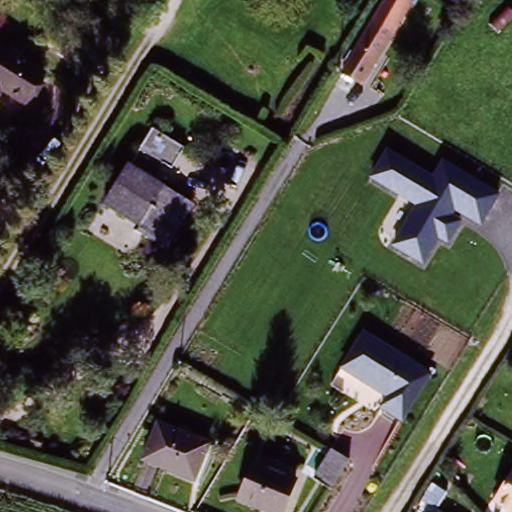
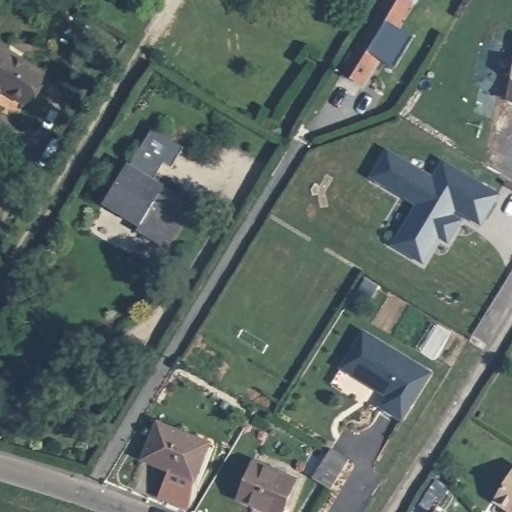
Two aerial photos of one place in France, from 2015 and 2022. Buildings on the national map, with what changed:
unchanged [(388,0),(407,0),(412,3),(360,86),(342,76),(388,0)]
unchanged [(0,44),(50,75),(30,106),(6,91),(0,100),(0,44)]
new [(507,100),(512,72),(512,104),(507,100)]
unchanged [(130,164),(150,128),(183,146),(171,168),(162,163),(153,179),(190,202),(163,247),(133,229),(137,222),(110,206),(102,201),(126,161),(130,164)]
unchanged [(435,178),(445,160),(500,196),(480,229),(465,222),(450,246),(441,240),(422,268),(389,246),(412,209),(367,178),(385,150),(435,178)]
unchanged [(389,396),(344,368),(366,332),(432,374),(404,420),(383,406),(389,396)]
unchanged [(210,451),(191,483),(145,456),(164,423),(210,451)]
unchanged [(315,475),(334,447),(350,456),(332,485),(315,475)]
unchanged [(280,512),(267,512),(237,494),(257,462),(296,486),(280,512)]
unchanged [(492,505),(512,471),(512,512),(503,512),(492,505)]
unchanged [(439,510),(442,512),(437,512),(439,510)]

